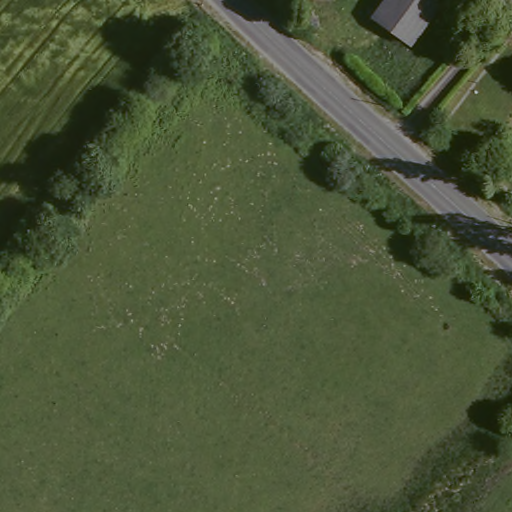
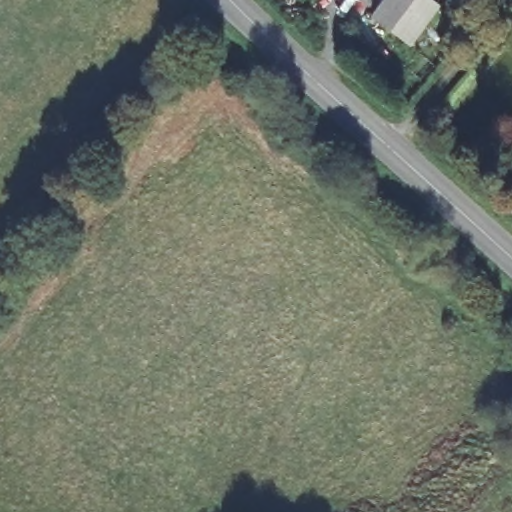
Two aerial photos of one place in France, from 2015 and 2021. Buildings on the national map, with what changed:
unchanged [(439,5),(415,42),(380,18),(391,0),(431,0),(439,5)]

